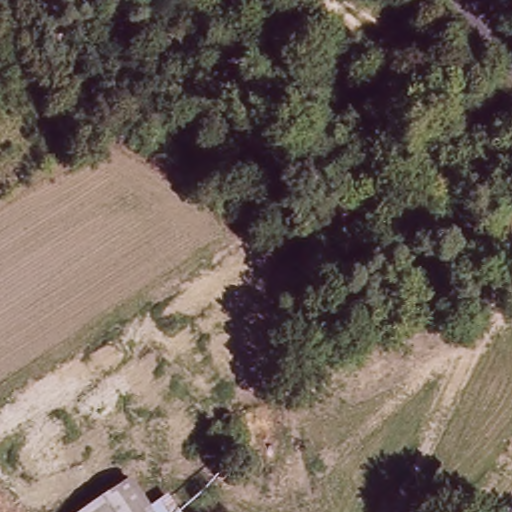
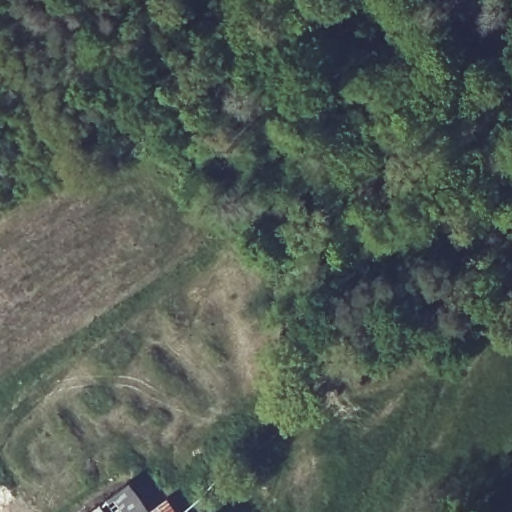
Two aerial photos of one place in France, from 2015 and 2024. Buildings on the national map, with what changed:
unchanged [(141,512),(94,512),(125,490),(141,512)]
unchanged [(174,512),(155,512),(168,503),(174,512)]

